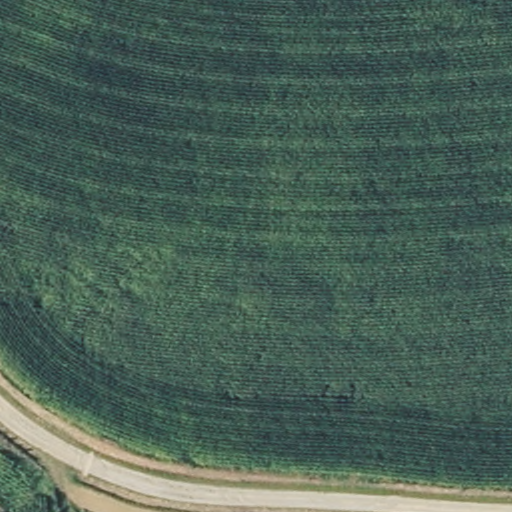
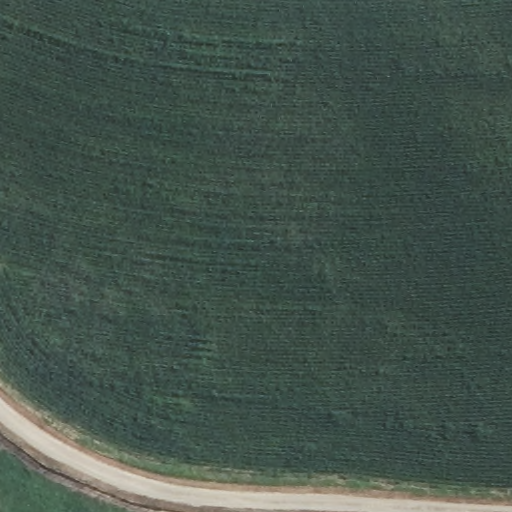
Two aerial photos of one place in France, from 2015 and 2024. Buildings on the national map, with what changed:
[]

